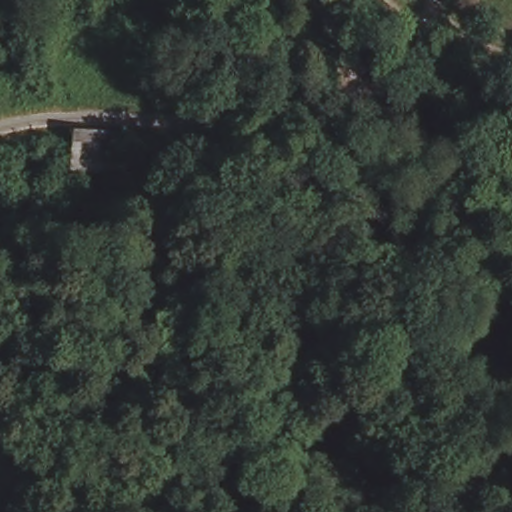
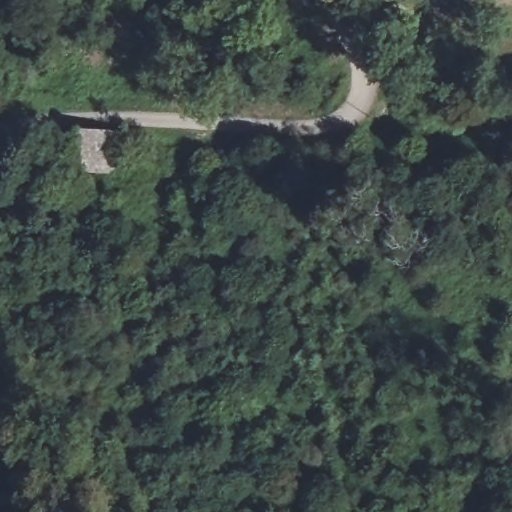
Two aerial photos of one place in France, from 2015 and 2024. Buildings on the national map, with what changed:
unchanged [(118,120),(118,197),(66,197),(64,123),(118,120)]

